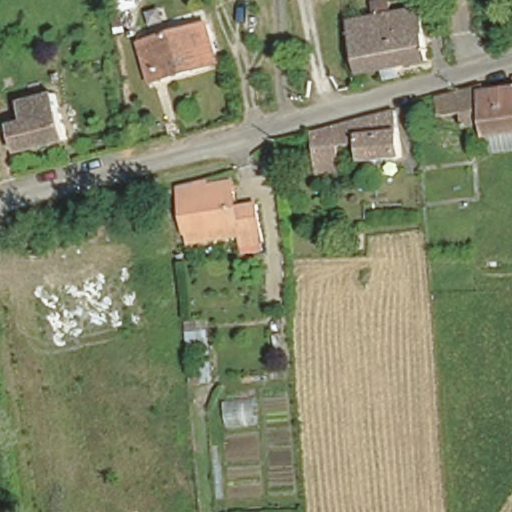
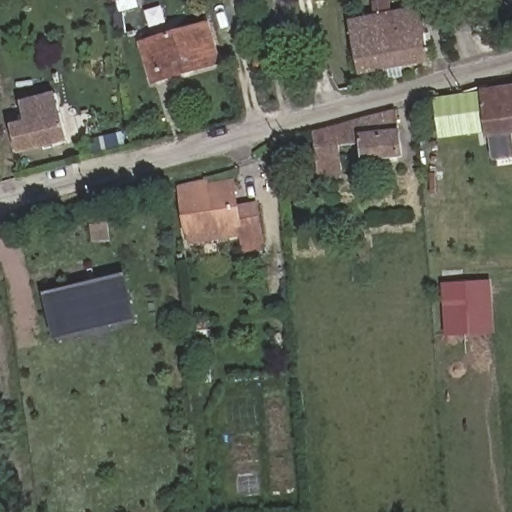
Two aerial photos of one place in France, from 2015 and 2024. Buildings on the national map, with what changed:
unchanged [(370,10),(368,0),(387,0),(388,8),(370,10)]
unchanged [(358,68),(350,18),(423,5),(431,55),(358,68)]
unchanged [(143,30),(201,19),(209,58),(151,69),(143,30)]
unchanged [(440,94),(484,83),(487,88),(512,84),(512,131),(491,133),(488,119),(464,121),(462,113),(442,114),(426,115),(424,99),(440,94)]
unchanged [(26,122),(24,110),(21,99),(57,90),(67,134),(15,147),(10,126),(16,124),(26,122)]
unchanged [(398,110),(404,158),(368,161),(366,145),(342,147),(343,165),(319,168),(315,133),(398,110)]
unchanged [(257,205),(264,247),(245,250),(240,230),(190,240),(177,188),(206,180),(230,174),(234,194),(237,209),(257,205)]
unchanged [(95,219),(109,217),(111,232),(97,234),(95,219)]
new [(54,340),(42,293),(126,274),(137,320),(54,340)]
new [(443,283),(493,282),(494,335),(444,336),(443,283)]

